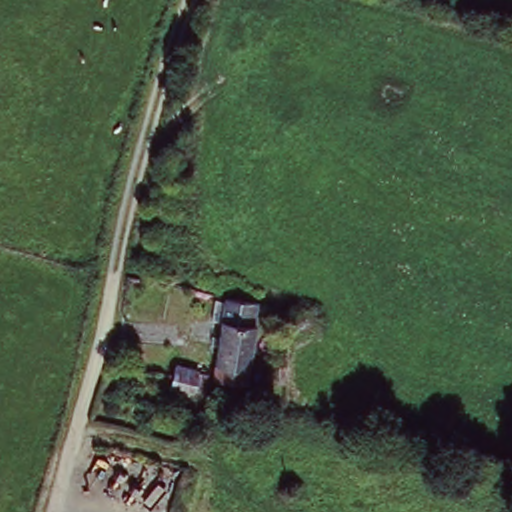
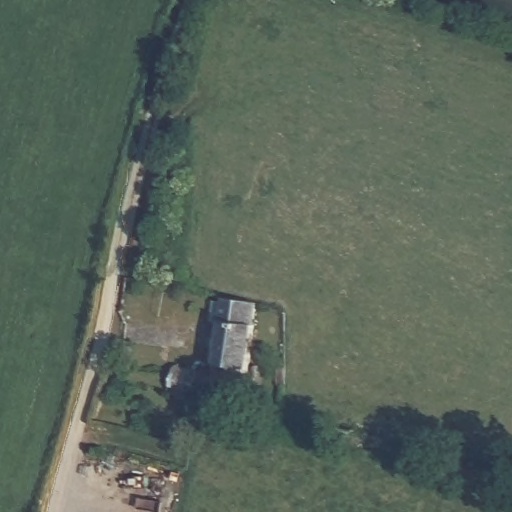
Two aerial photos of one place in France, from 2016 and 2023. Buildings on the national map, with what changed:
unchanged [(211,389),(217,329),(210,329),(211,297),(257,302),(247,391),(211,389)]
unchanged [(283,313),(316,317),(316,335),(282,332),(283,313)]
unchanged [(171,367),(199,374),(197,382),(204,387),(201,398),(165,389),(167,378),(171,367)]

